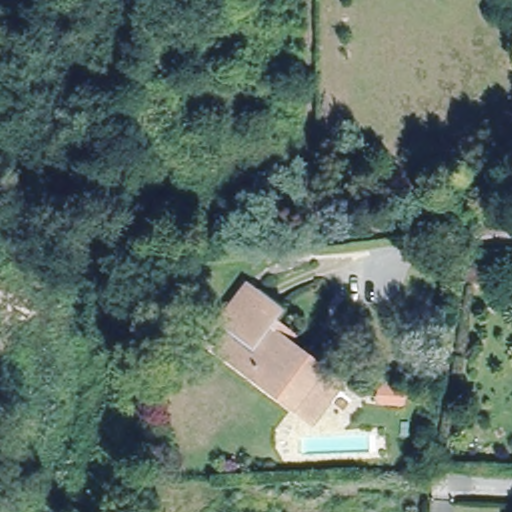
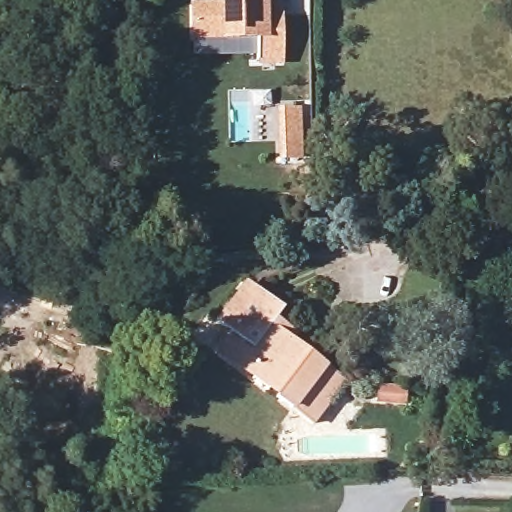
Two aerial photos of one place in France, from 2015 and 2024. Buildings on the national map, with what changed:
new [(206,0),(268,0),(268,1),(282,2),(282,64),(257,64),(257,39),(220,39),(190,39),(189,3),(206,0)]
unchanged [(307,419),(216,349),(228,332),(222,327),(235,309),(232,307),(250,284),(261,292),(287,311),(280,319),(288,325),(299,334),(293,340),(291,344),(321,367),(322,365),(338,377),(345,382),(313,424),(307,419)]
unchanged [(392,408),(393,393),(400,393),(417,395),(416,410),(398,408),(392,408)]

